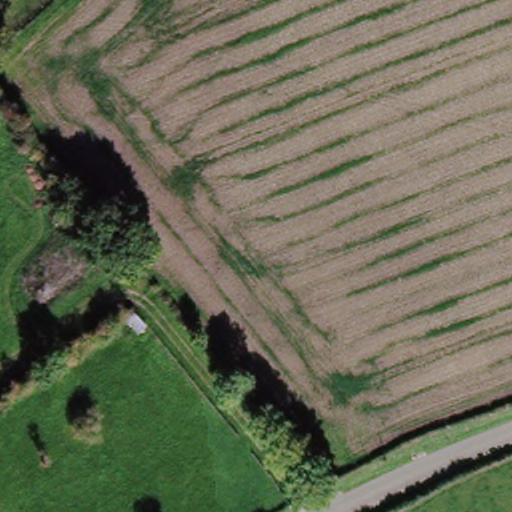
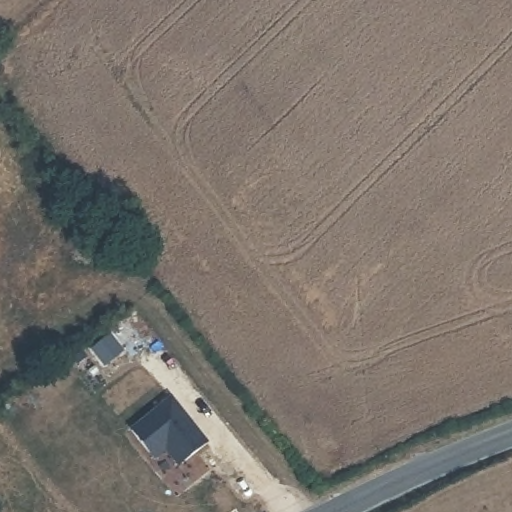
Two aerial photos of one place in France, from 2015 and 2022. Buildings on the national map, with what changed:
new [(210,442),(177,467),(165,451),(154,460),(129,430),(172,394),(210,442)]

